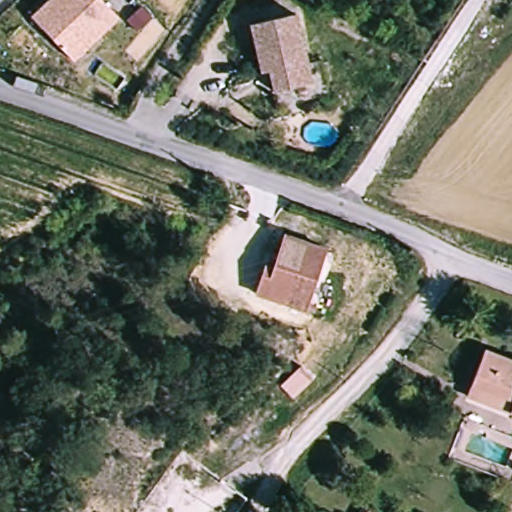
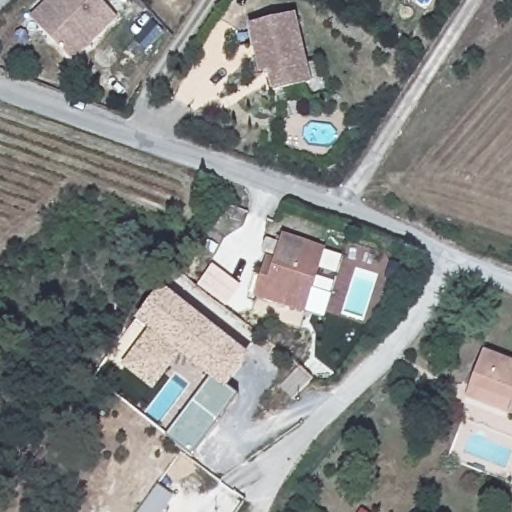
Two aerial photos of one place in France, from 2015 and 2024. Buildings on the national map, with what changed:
unchanged [(75,56),(42,22),(33,12),(46,0),(108,0),(121,12),(75,56)]
unchanged [(255,62),(246,29),(293,16),(312,87),(275,97),(270,76),(260,79),(255,62)]
unchanged [(266,257),(278,262),(288,237),(327,252),(304,307),(266,292),(254,288),(266,257)]
new [(228,389),(239,398),(194,457),(167,436),(212,380),(181,356),(154,392),(122,367),(151,332),(137,321),(164,288),(252,358),(228,389)]
unchanged [(512,360),(512,415),(508,413),(463,397),(468,382),(479,348),(512,360)]
unchanged [(310,371),(283,394),(273,382),(300,358),(310,371)]

